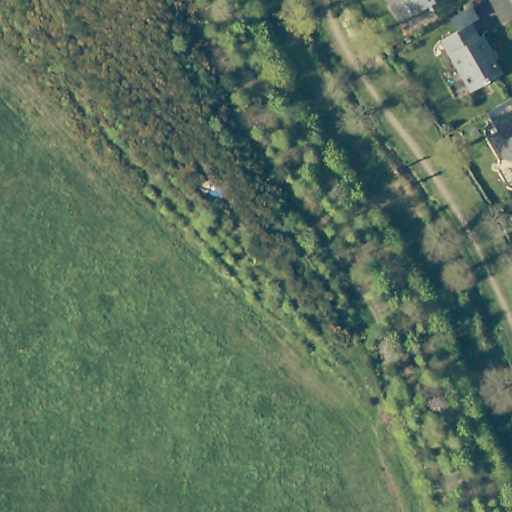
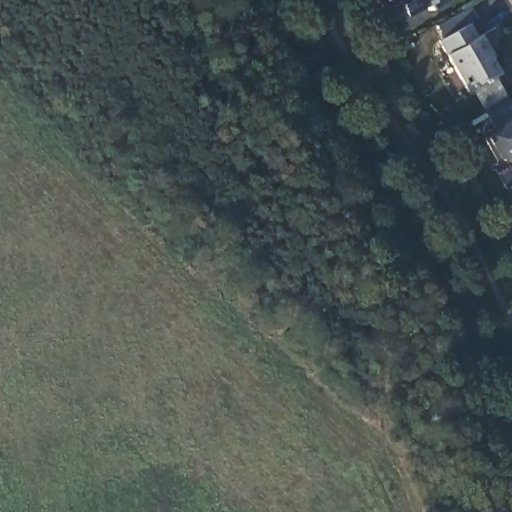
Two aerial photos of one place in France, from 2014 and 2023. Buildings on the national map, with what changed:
unchanged [(428,5),(411,15),(402,0),(447,0),(430,10),(428,5)]
unchanged [(472,22),(480,36),(483,34),(492,50),(490,51),(503,72),(471,91),(441,40),(472,22)]
unchanged [(492,135),(499,130),(495,125),(512,115),(512,162),(509,164),(492,135)]

